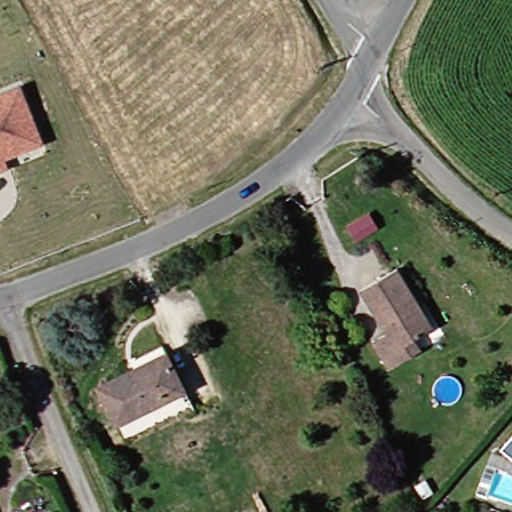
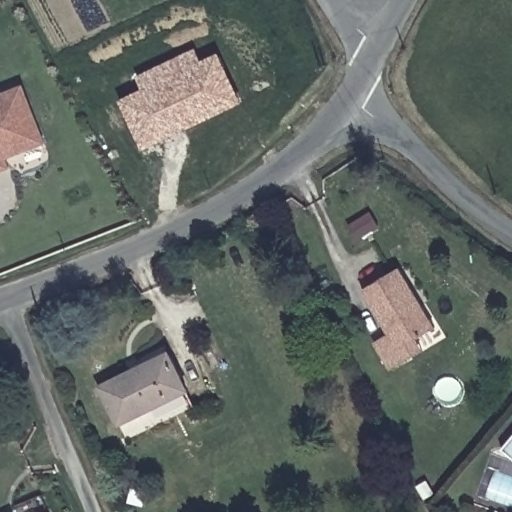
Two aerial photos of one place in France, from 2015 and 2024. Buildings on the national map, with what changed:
new [(119,100),(141,90),(135,77),(195,49),(202,61),(218,54),(242,104),(142,150),(119,100)]
unchanged [(0,94),(24,85),(46,142),(7,157),(10,167),(0,171),(0,94)]
unchanged [(407,362),(391,372),(375,345),(390,335),(365,294),(401,272),(422,306),(436,330),(430,333),(420,340),(426,351),(407,362)]
unchanged [(122,431),(104,393),(131,381),(125,370),(165,351),(171,362),(189,400),(122,431)]
unchanged [(511,455),(512,455),(512,456),(511,455)]

